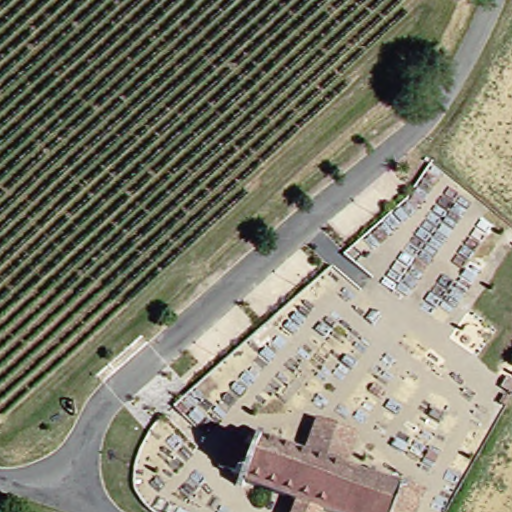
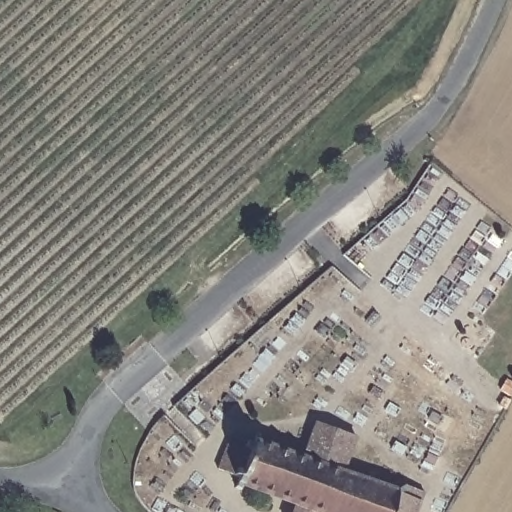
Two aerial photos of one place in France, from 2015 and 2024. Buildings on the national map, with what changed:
unchanged [(395,486),(385,512),(281,512),(284,504),(227,487),(248,435),(295,452),(305,424),(346,439),(335,467),(395,486)]

